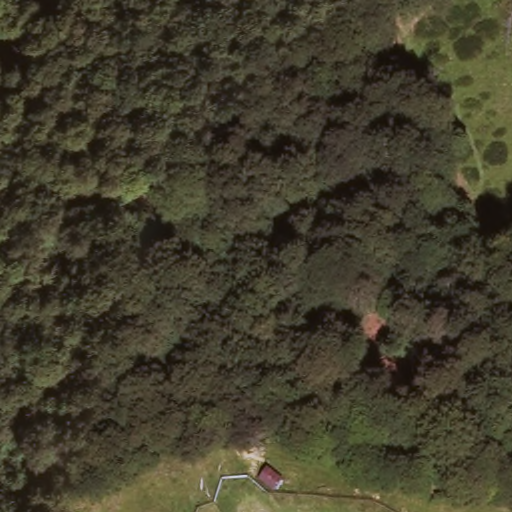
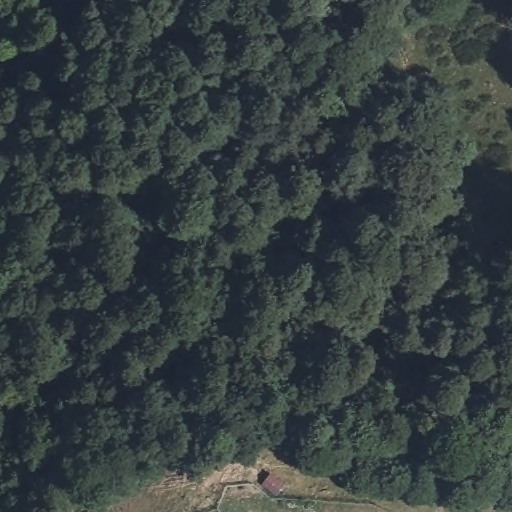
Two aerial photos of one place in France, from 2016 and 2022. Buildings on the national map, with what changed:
unchanged [(280,476),(285,480),(276,494),(261,481),(270,468),(280,476)]

